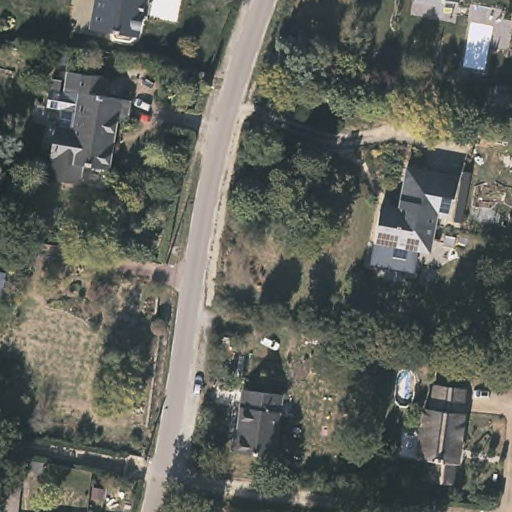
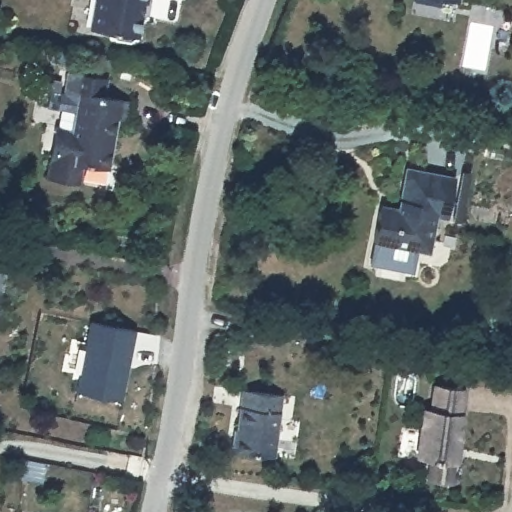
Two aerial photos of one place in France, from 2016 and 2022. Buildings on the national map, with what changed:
unchanged [(140,11),(136,35),(135,35),(129,40),(114,37),(109,30),(89,26),(93,0),(139,0),(137,11),(140,11)]
unchanged [(142,0),(145,0),(145,1),(142,0)]
unchanged [(428,0),(443,0),(440,3),(428,0)]
unchanged [(122,76),(120,93),(147,98),(142,118),(131,116),(122,169),(94,164),(90,184),(57,178),(66,125),(71,124),(81,69),(122,76)]
unchanged [(373,244),(377,216),(377,205),(397,207),(402,169),(448,174),(442,218),(426,217),(424,240),(423,250),(413,249),(373,244)]
new [(89,320),(136,329),(124,401),(76,390),(89,320)]
unchanged [(466,388),(462,413),(467,414),(459,464),(457,463),(453,484),(430,480),(433,460),(420,458),(428,408),(435,409),(438,384),(466,388)]
unchanged [(282,398),(273,459),(234,453),(234,439),(240,434),(245,393),(282,398)]

